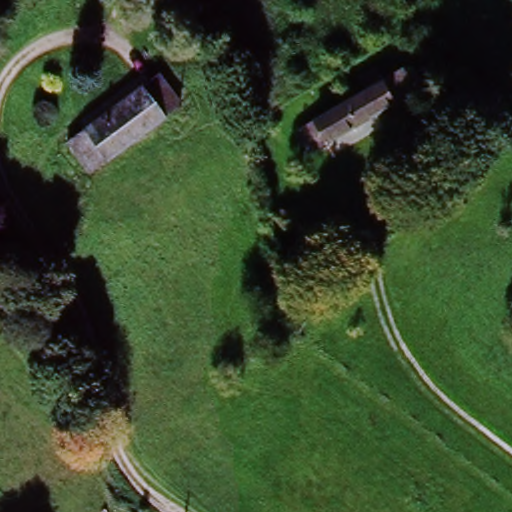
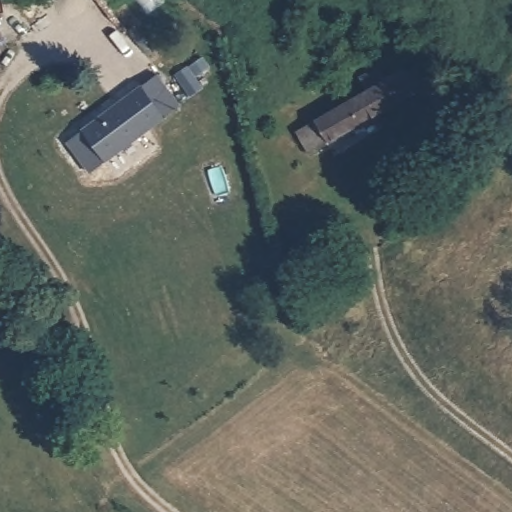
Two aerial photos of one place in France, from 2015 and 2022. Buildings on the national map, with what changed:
unchanged [(299,139),(320,123),(364,94),(356,83),(377,67),(383,75),(404,60),(422,86),(402,100),(398,104),(336,145),(314,160),(299,139)]
unchanged [(156,69),(183,104),(91,175),(65,138),(156,69)]
unchanged [(403,160),(424,145),(439,168),(420,181),(403,160)]

